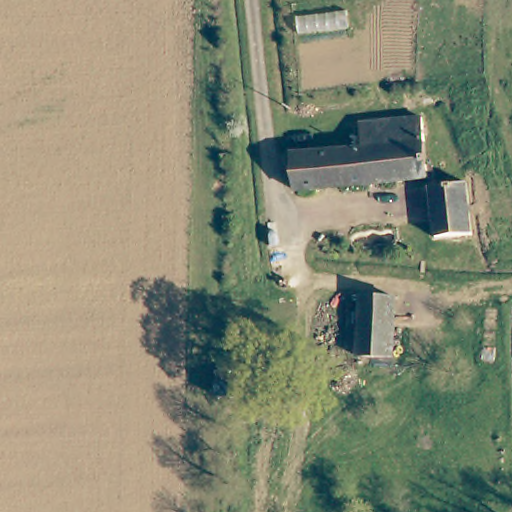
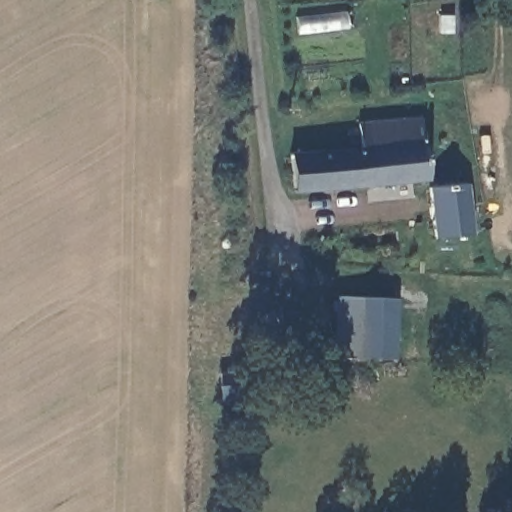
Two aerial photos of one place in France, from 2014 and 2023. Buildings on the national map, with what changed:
unchanged [(291,193),(290,156),(313,154),(360,151),(357,128),(417,123),(423,179),(291,193)]
unchanged [(470,240),(433,242),(430,190),(467,188),(470,240)]
unchanged [(357,359),(358,300),(391,300),(390,359),(357,359)]

